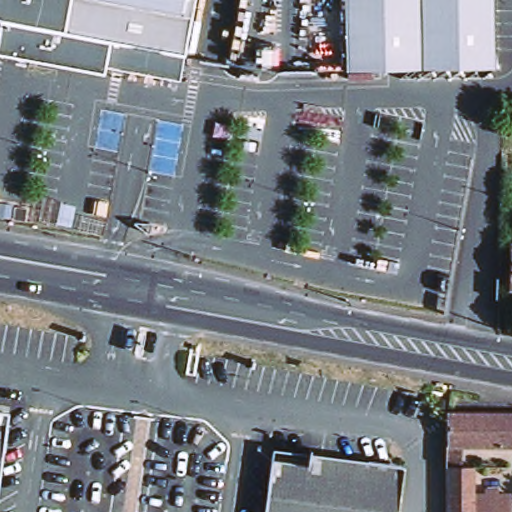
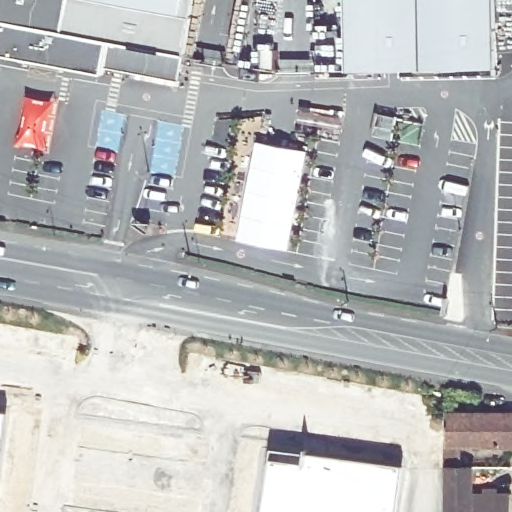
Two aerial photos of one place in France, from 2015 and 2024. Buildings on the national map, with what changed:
unchanged [(0,54),(0,51),(5,20),(0,19),(0,0),(199,0),(189,52),(114,38),(109,65),(108,74),(0,54)]
unchanged [(347,70),(345,0),(494,0),(494,67),(347,70)]
unchanged [(189,52),(184,79),(109,65),(114,38),(189,52)]
new [(255,139),(309,150),(289,251),(235,241),(255,139)]
unchanged [(449,469),(448,414),(512,415),(512,447),(464,448),(464,469),(449,469)]
unchanged [(0,460),(0,428),(4,429),(0,460)]
unchanged [(278,466),(329,472),(340,463),(401,471),(395,512),(272,512),(278,466)]
unchanged [(449,469),(464,469),(474,469),(474,497),(512,497),(512,512),(449,512),(449,469)]

